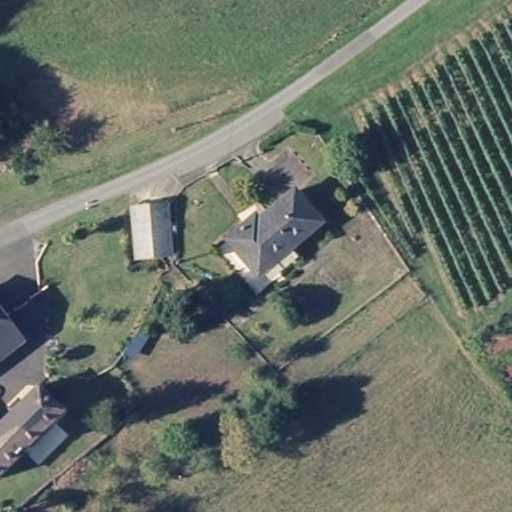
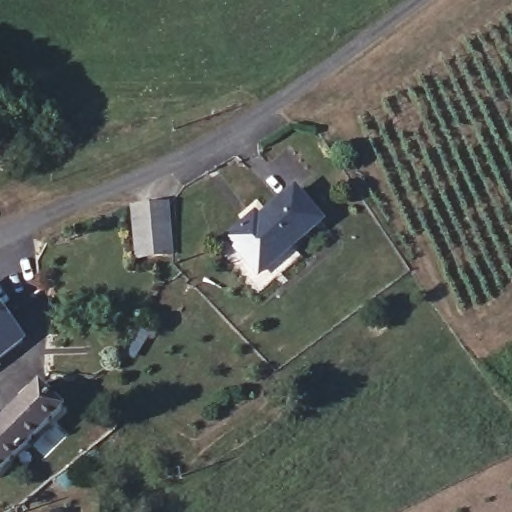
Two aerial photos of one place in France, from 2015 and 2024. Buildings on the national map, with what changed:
unchanged [(260,214),(265,219),(297,192),(324,219),(264,275),(232,239),(260,214)]
unchanged [(164,211),(171,256),(142,260),(133,215),(164,211)]
unchanged [(0,365),(0,310),(26,346),(0,365)]
unchanged [(62,414),(0,474),(0,428),(40,390),(62,414)]

